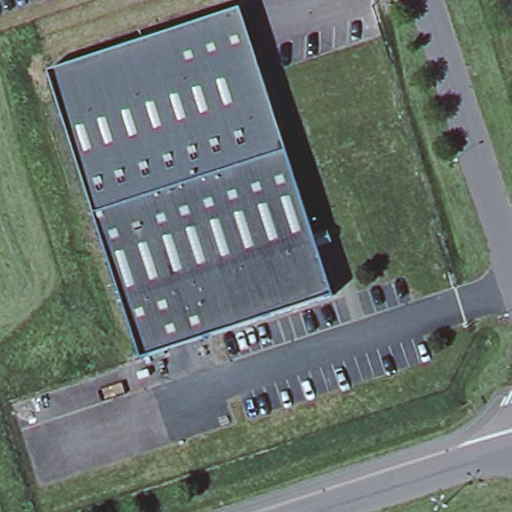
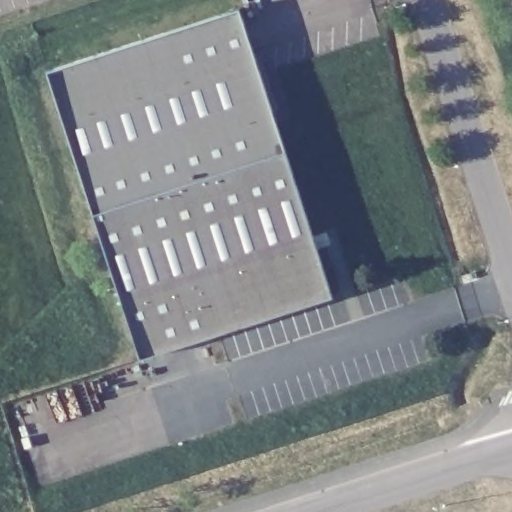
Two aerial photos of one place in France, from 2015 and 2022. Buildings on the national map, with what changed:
unchanged [(48,69),(241,7),(288,150),(95,213),(48,69)]
unchanged [(288,150),(334,295),(142,358),(95,213),(288,150)]

